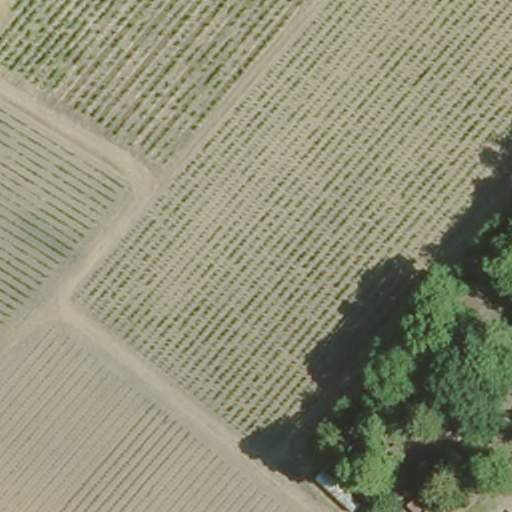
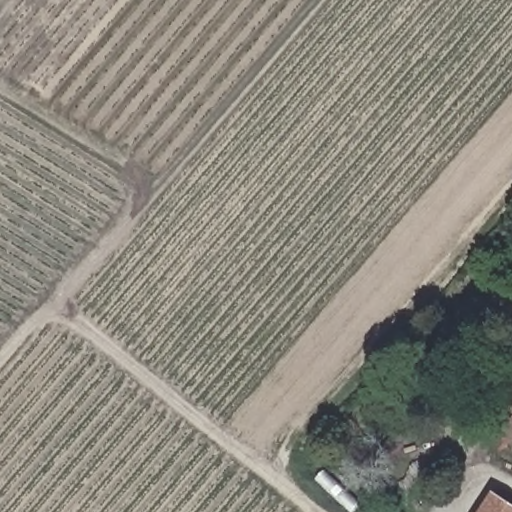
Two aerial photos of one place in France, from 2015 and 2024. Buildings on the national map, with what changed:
new [(493,492),(512,503),(512,512),(480,512),(493,492)]

